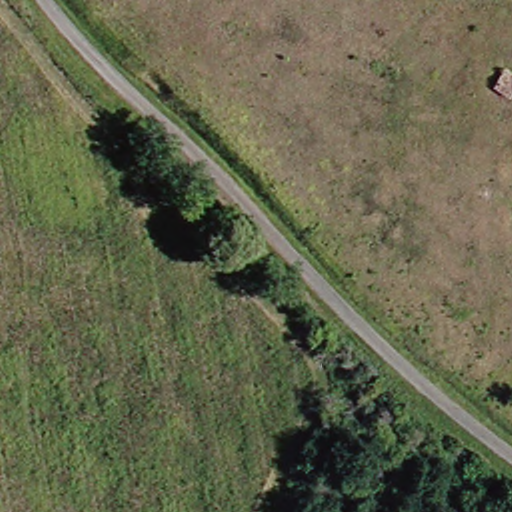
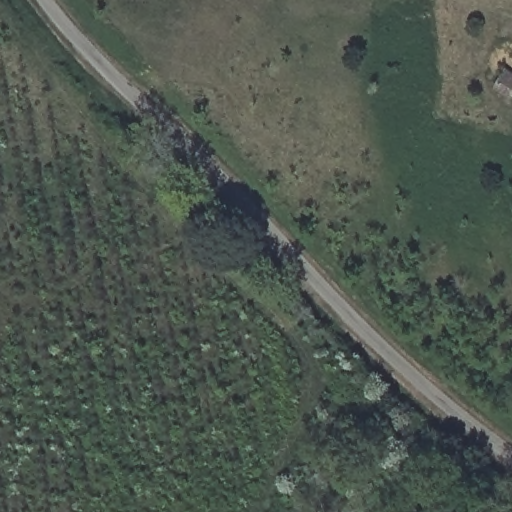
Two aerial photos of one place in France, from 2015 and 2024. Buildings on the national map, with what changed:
unchanged [(510,98),(512,86),(512,98),(510,98)]

